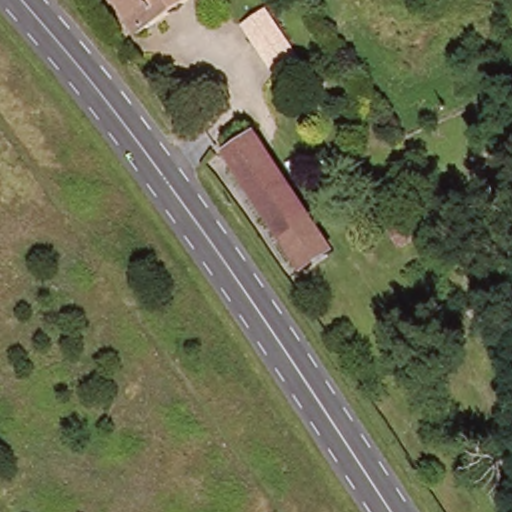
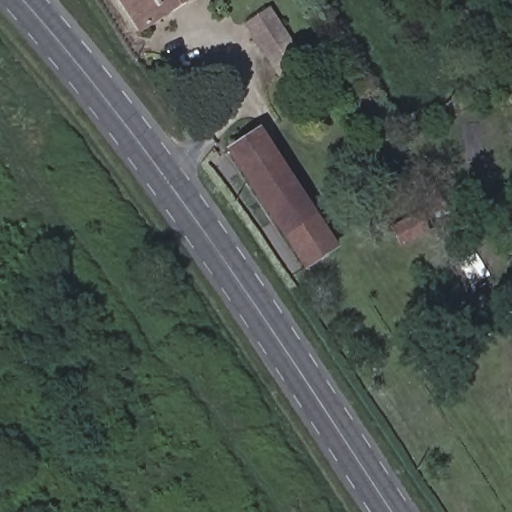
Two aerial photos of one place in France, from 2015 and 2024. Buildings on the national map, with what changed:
unchanged [(121,0),(184,0),(141,29),(121,0)]
unchanged [(302,63),(280,75),(244,19),(266,6),(302,63)]
unchanged [(337,249),(303,270),(224,149),(257,125),(337,249)]
unchanged [(429,229),(397,249),(385,232),(417,212),(429,229)]

